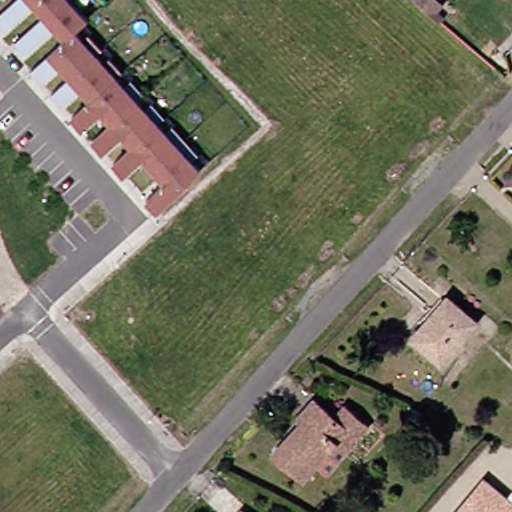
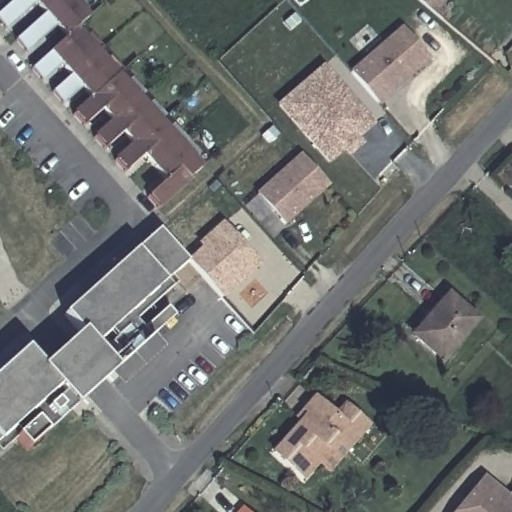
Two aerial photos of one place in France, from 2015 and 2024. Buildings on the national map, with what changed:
unchanged [(148,222),(137,210),(155,193),(134,169),(115,185),(105,173),(123,156),(114,145),(95,162),(84,150),(102,133),(92,122),(75,138),(64,126),(82,110),(72,99),(54,115),(43,103),(61,87),(51,76),(33,92),(22,80),(57,48),(47,36),(17,63),(6,51),(36,24),(26,13),(0,37),(0,15),(15,1),(15,0),(84,0),(100,17),(87,28),(95,37),(101,32),(115,47),(109,53),(117,62),(123,57),(137,72),(130,78),(138,86),(144,81),(158,96),(152,102),(160,110),(165,105),(180,120),(173,126),(180,134),(186,129),(209,153),(198,165),(204,172),(148,222)]
new [(349,73),(401,27),(430,61),(378,107),(349,73)]
new [(290,87),(318,59),(370,112),(328,152),(301,125),(277,100),(290,87)]
new [(360,132),(348,143),(343,137),(355,127),(360,132)]
unchanged [(299,155),(330,187),(284,227),(255,194),(299,155)]
new [(189,259),(201,248),(197,243),(222,221),(261,264),(224,298),(189,259)]
new [(187,262),(164,283),(94,345),(115,369),(75,406),(44,432),(25,448),(15,436),(10,430),(0,439),(0,373),(26,350),(42,367),(80,334),(63,315),(135,251),(159,229),(187,262)]
unchanged [(438,360),(411,338),(445,296),(471,319),(438,360)]
unchanged [(322,450),(298,476),(268,450),(302,414),(298,410),(309,397),(328,415),(340,403),(363,426),(342,450),(333,460),(322,450)]
unchanged [(456,510),(485,475),(512,497),(512,512),(455,512),(456,510)]
unchanged [(236,510),(238,512),(234,512),(236,510)]

